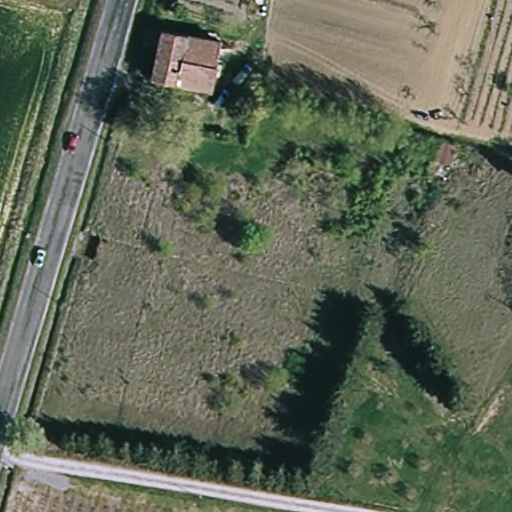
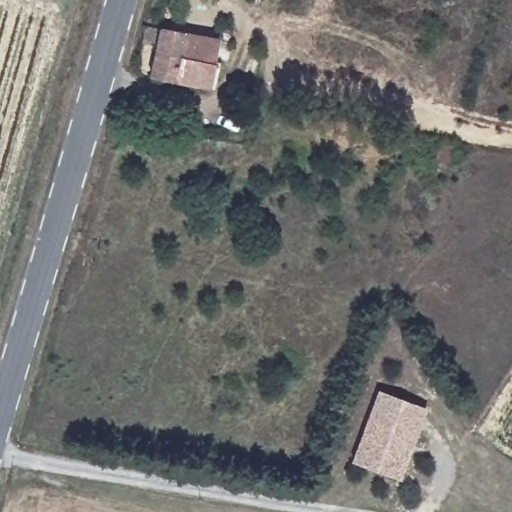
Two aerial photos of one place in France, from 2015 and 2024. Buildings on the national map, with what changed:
unchanged [(159,46),(144,42),(148,26),(218,43),(213,64),(219,64),(210,91),(151,76),(159,46)]
new [(385,394),(432,413),(404,483),(357,464),(385,394)]

